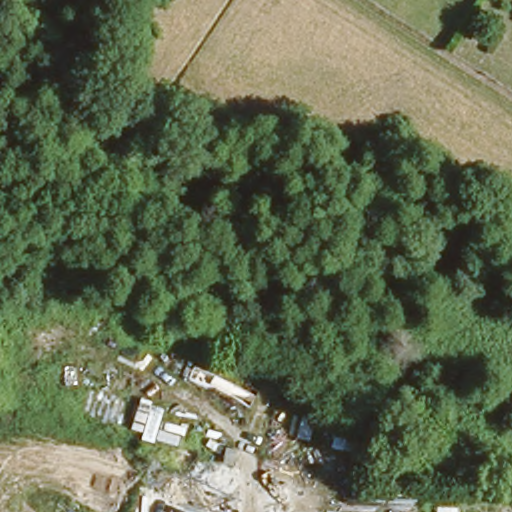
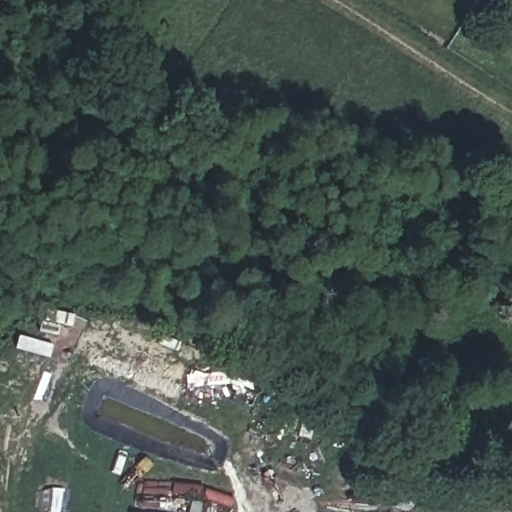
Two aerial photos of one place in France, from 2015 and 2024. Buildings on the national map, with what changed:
unchanged [(449,388),(453,368),(494,377),(490,396),(454,389),(449,388)]

